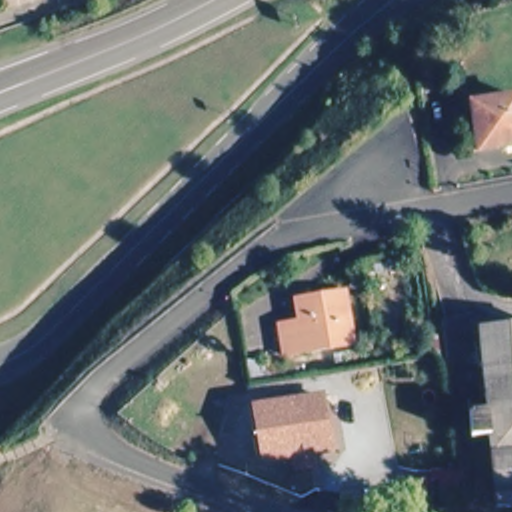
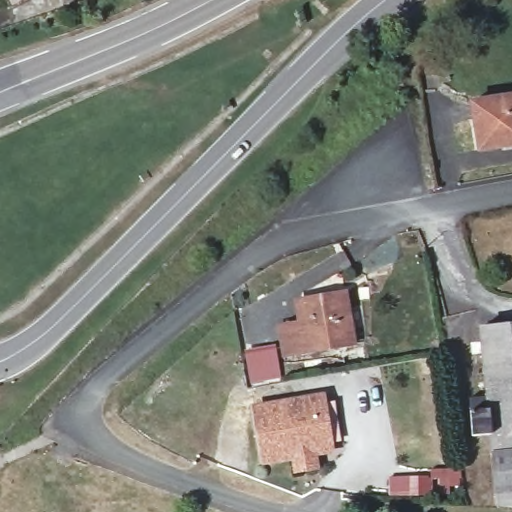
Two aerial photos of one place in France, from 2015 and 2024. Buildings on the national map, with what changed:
unchanged [(470,100),(512,94),(512,142),(478,147),(470,100)]
unchanged [(288,359),(284,332),(309,328),(305,302),(348,295),(357,347),(288,359)]
unchanged [(491,499),(484,428),(466,429),(463,391),(480,390),(473,321),(512,318),(512,501),(491,499)]
unchanged [(381,359),(379,347),(404,344),(405,355),(381,359)]
unchanged [(295,473),(293,460),(263,464),(255,412),(323,401),(331,453),(314,456),(316,470),(295,473)]

